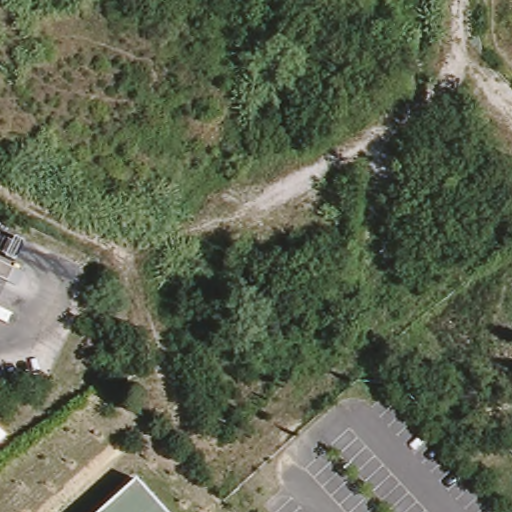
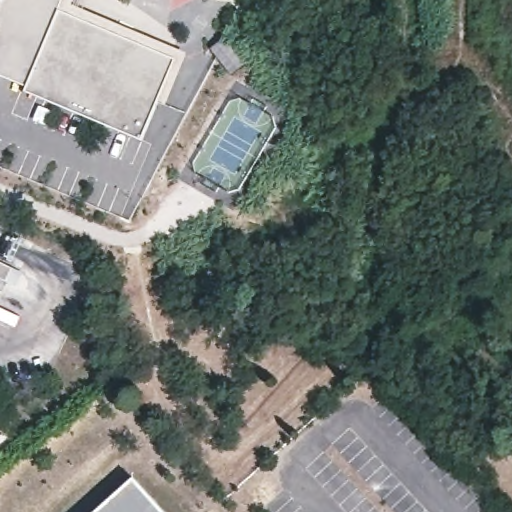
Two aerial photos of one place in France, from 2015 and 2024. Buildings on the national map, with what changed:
new [(176,60),(158,102),(143,140),(25,92),(28,87),(0,74),(0,0),(63,0),(59,10),(176,60)]
new [(163,104),(158,102),(176,60),(59,10),(63,0),(74,0),(70,7),(183,55),(163,104)]
new [(226,38),(246,65),(232,77),(211,50),(226,38)]
unchanged [(136,480),(165,512),(100,512),(136,480)]

